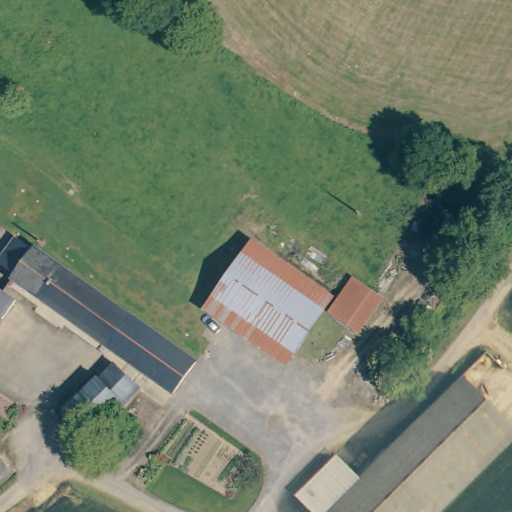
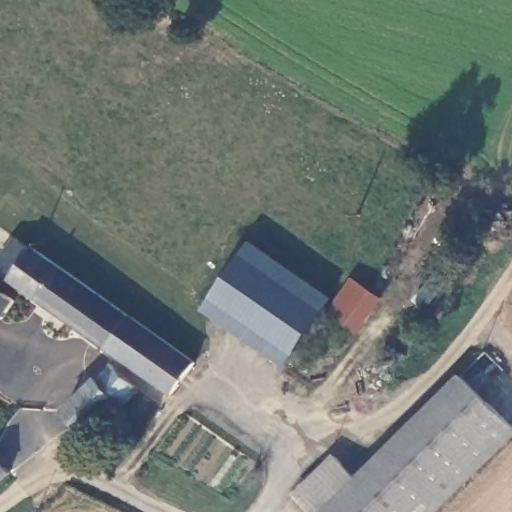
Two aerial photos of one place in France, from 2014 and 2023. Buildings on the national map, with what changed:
unchanged [(244,237),(327,296),(287,352),(204,293),(244,237)]
unchanged [(74,325),(11,278),(13,273),(2,266),(20,240),(59,267),(96,293),(74,325)]
unchanged [(349,335),(321,312),(349,277),(377,297),(349,335)]
unchanged [(0,324),(0,285),(18,297),(0,324)]
unchanged [(134,321),(192,363),(171,393),(144,375),(74,325),(96,293),(134,321)]
unchanged [(287,352),(275,368),(194,309),(204,293),(287,352)]
unchanged [(124,402),(119,397),(85,434),(64,412),(114,361),(139,384),(135,389),(124,402)]
unchanged [(463,374),(512,430),(512,444),(438,512),(314,512),(356,473),(463,374)]
unchanged [(335,452),(356,473),(314,512),(295,490),(335,452)]
unchanged [(0,482),(0,455),(11,473),(0,482)]

